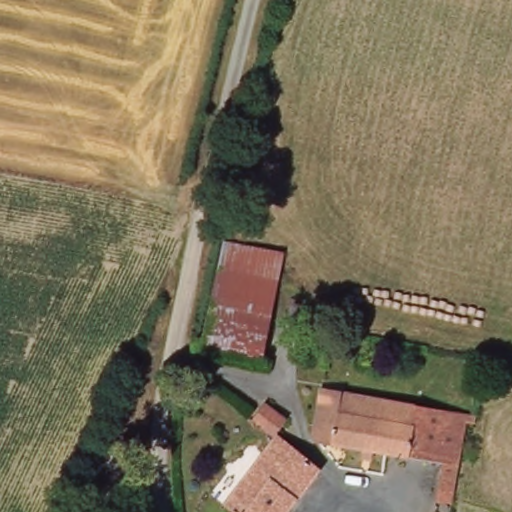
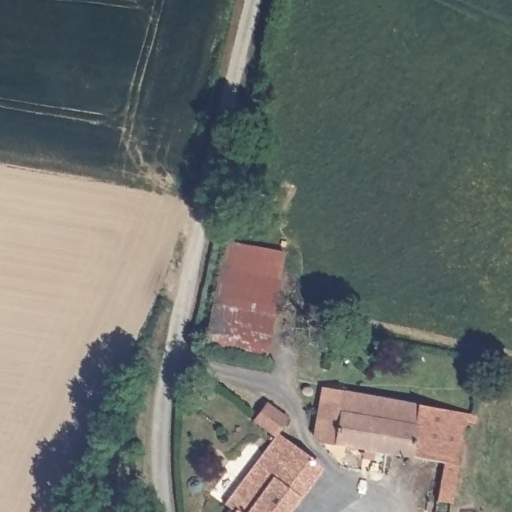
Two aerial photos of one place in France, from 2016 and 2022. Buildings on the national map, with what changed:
unchanged [(271,360),(208,352),(223,242),(287,252),(271,360)]
unchanged [(438,500),(444,465),(314,440),(323,392),(455,413),(477,417),(475,425),(469,423),(463,456),(455,504),(438,500)]
unchanged [(283,433),(262,417),(266,412),(275,402),(295,416),(284,431),(327,467),(293,512),(239,512),(243,507),(233,501),(283,433)]

